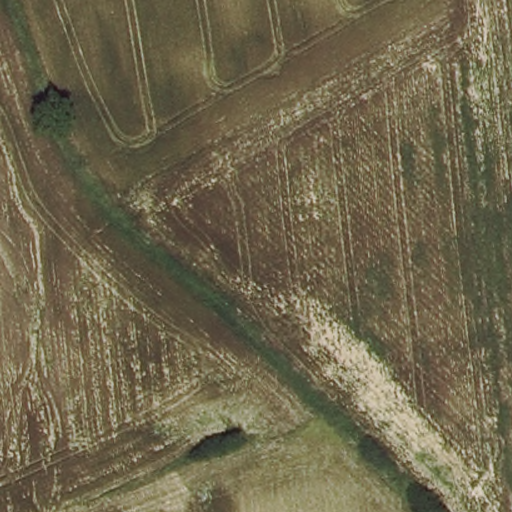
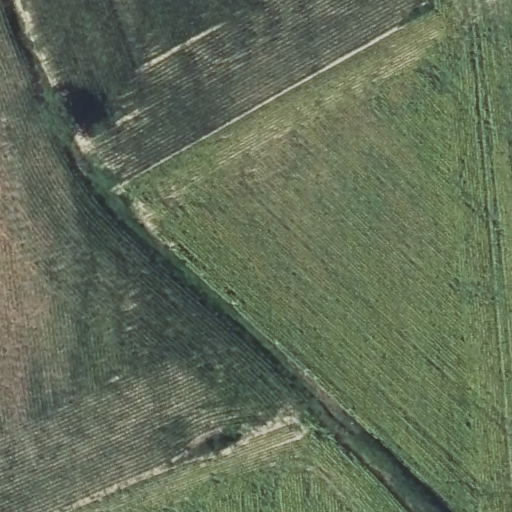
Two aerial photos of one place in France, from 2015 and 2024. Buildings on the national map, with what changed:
[]

